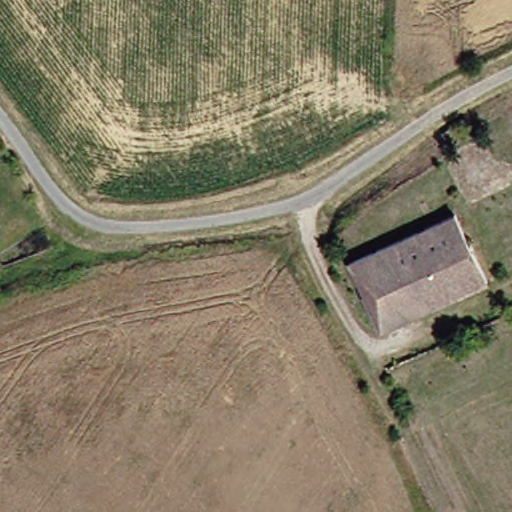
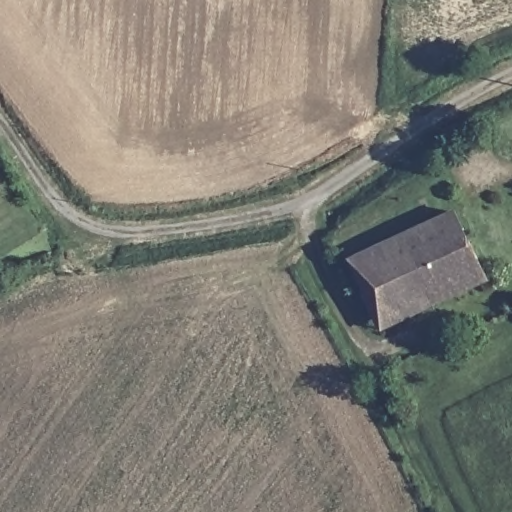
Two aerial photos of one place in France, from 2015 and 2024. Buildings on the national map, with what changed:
unchanged [(480,141),(470,147),(465,138),(478,134),(480,141)]
unchanged [(371,254),(445,216),(476,291),(400,324),(371,254)]
unchanged [(370,337),(340,267),(371,254),(400,324),(370,337)]

